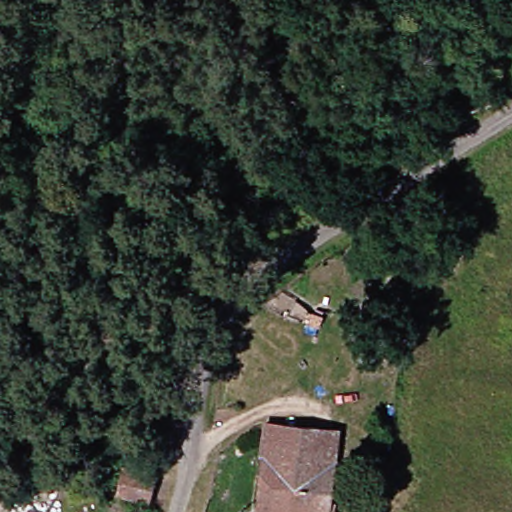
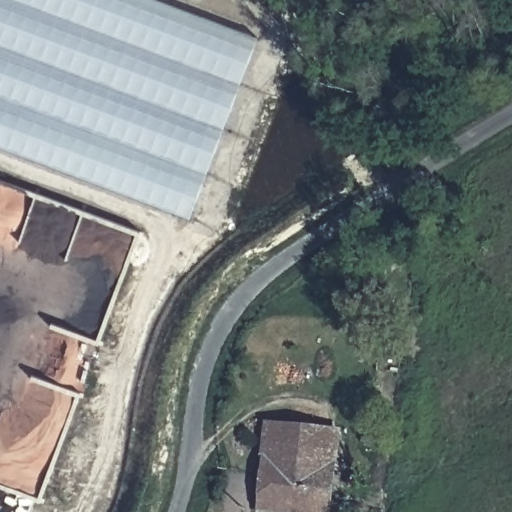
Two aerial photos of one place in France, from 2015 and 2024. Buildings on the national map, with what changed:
new [(0,148),(0,0),(159,0),(257,37),(189,220),(0,148)]
unchanged [(326,434),(320,498),(330,501),(329,512),(281,512),(250,507),(260,426),(326,434)]
unchanged [(149,458),(145,488),(113,483),(115,455),(149,458)]

